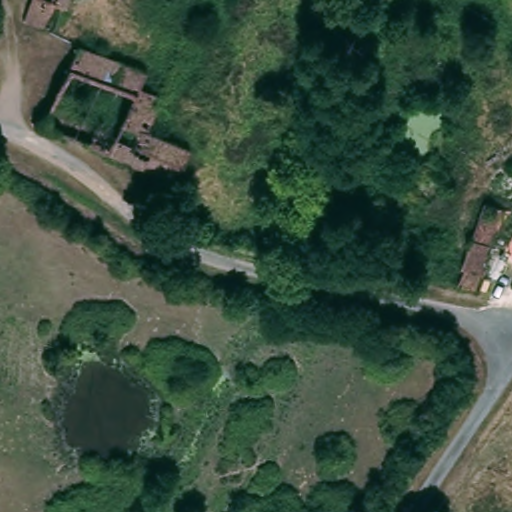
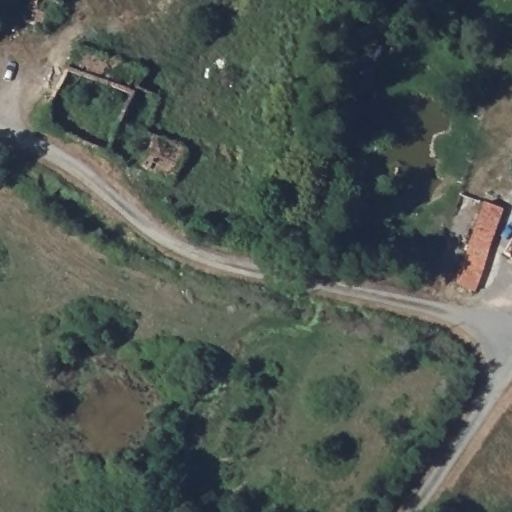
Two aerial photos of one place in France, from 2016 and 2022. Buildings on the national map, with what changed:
unchanged [(28,0),(43,0),(36,20),(23,15),(28,0)]
unchanged [(79,46),(144,71),(140,85),(162,94),(149,129),(126,120),(136,91),(71,65),(79,46)]
unchanged [(136,91),(126,120),(149,129),(190,145),(178,180),(45,133),(71,65),(136,91)]
unchanged [(506,210),(475,285),(463,283),(494,205),(506,210)]
unchanged [(506,253),(512,243),(512,257),(506,253)]

